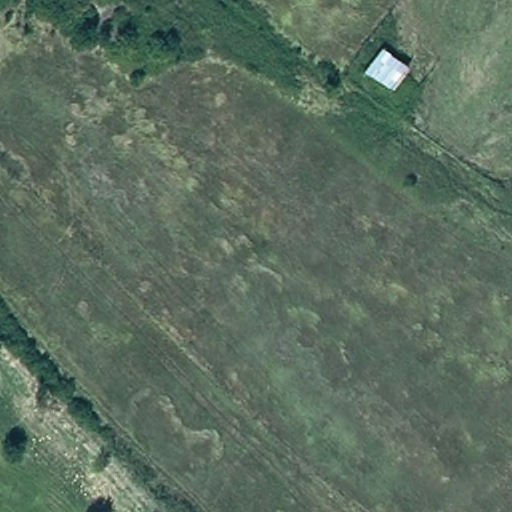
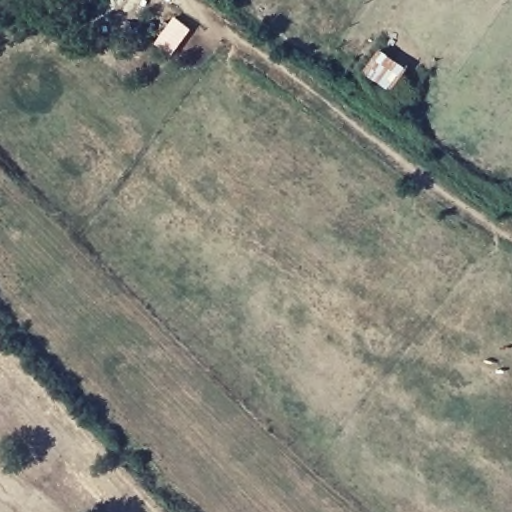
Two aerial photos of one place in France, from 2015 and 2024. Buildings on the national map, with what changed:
unchanged [(377,50),(405,70),(390,93),(360,73),(377,50)]

